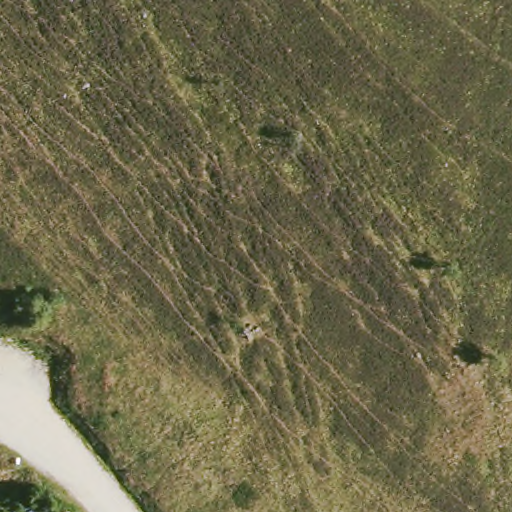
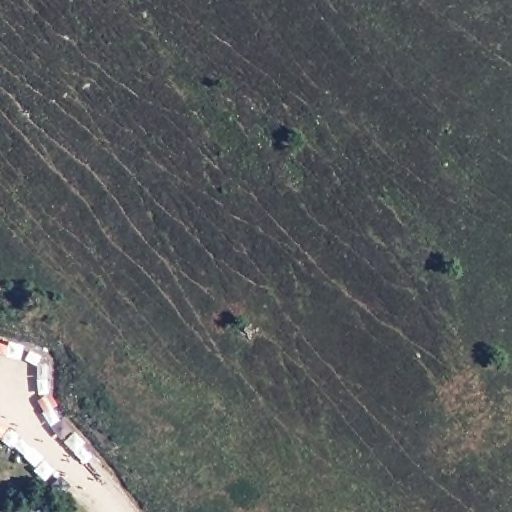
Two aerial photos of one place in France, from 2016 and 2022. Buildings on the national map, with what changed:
[]

